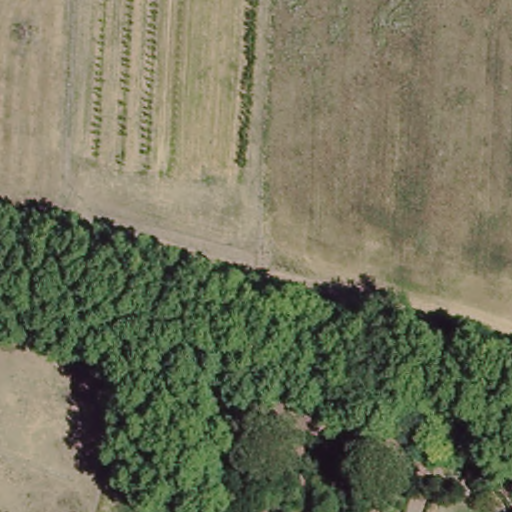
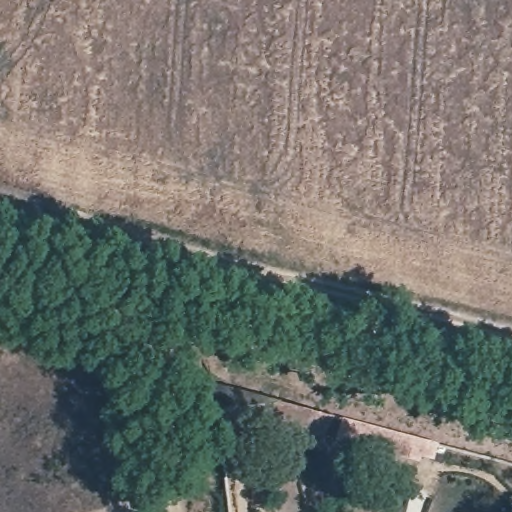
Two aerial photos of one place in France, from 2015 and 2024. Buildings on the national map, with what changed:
unchanged [(328,428),(283,421),(223,429),(217,381),(331,411),(328,428)]

